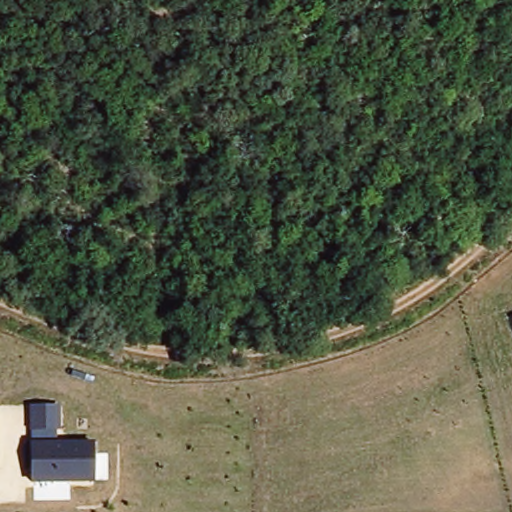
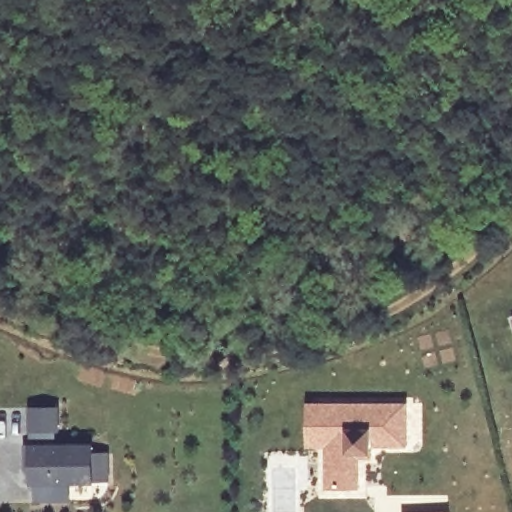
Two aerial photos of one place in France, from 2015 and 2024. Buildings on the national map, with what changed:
new [(363,457),(364,488),(331,489),(329,447),(312,447),(311,404),(328,403),(409,400),(411,444),(375,445),(376,451),(376,456),(363,457)]
unchanged [(60,409),(60,441),(94,442),(95,483),(30,483),(28,409),(60,409)]

